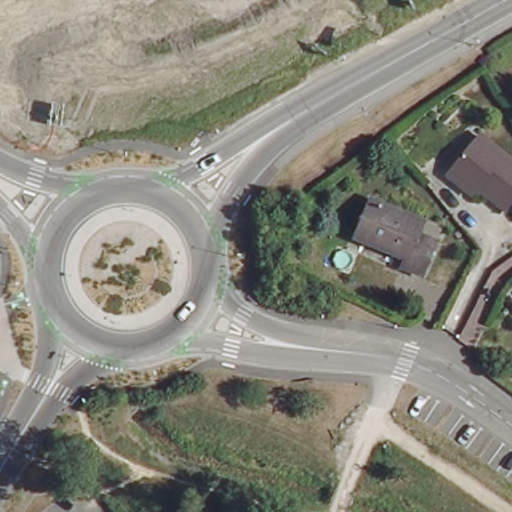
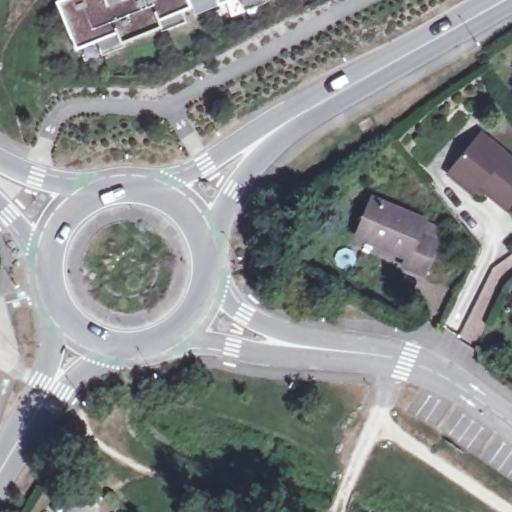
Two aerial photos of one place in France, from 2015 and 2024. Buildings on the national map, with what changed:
new [(77,49),(57,3),(65,0),(231,0),(219,5),(219,6),(194,16),(191,8),(181,12),(184,19),(161,28),(122,44),(102,52),(97,41),(77,49)]
new [(244,7),(241,0),(263,0),(244,7)]
unchanged [(474,193),(472,195),(449,175),(482,134),(512,160),(512,204),(507,211),(487,194),(482,199),(474,193)]
unchanged [(423,222),(419,234),(438,242),(425,274),(404,265),(408,256),(359,235),(374,201),(423,222)]

